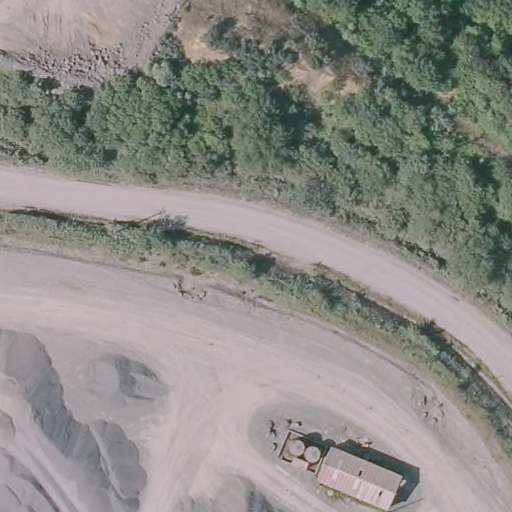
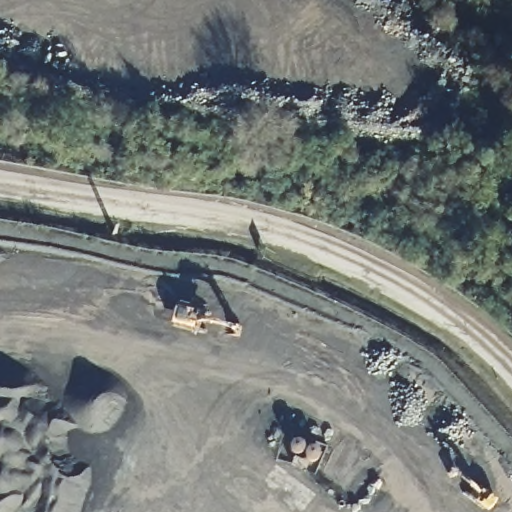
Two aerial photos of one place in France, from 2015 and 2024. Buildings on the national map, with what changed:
demolished [(327,452),(400,476),(391,506),(317,483),(327,452)]

